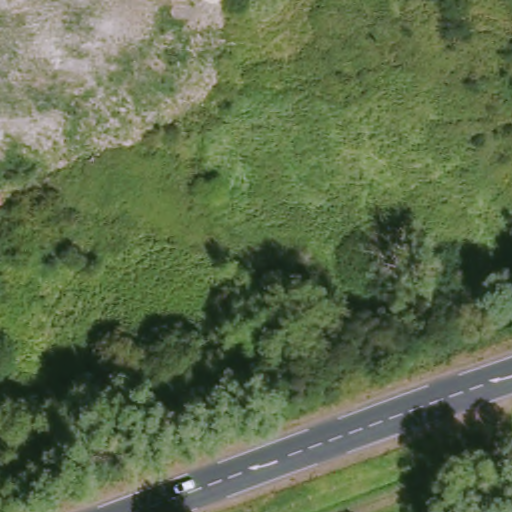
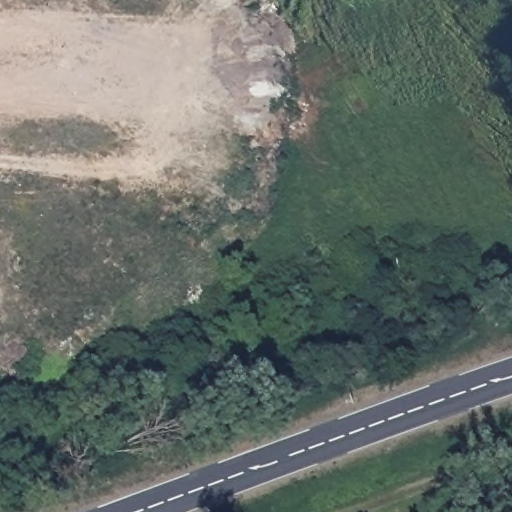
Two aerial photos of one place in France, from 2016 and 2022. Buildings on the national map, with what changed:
[]

